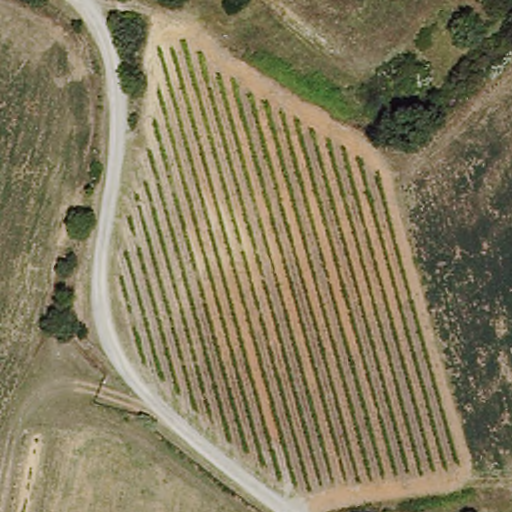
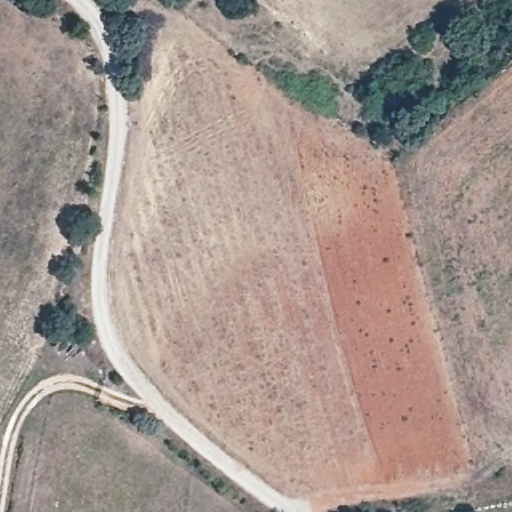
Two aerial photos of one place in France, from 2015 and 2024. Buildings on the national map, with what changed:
[]

